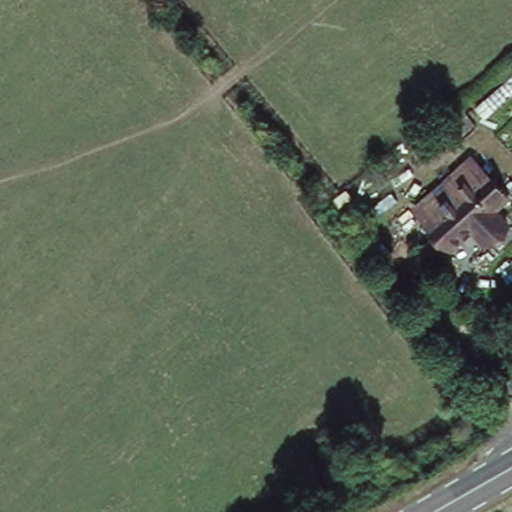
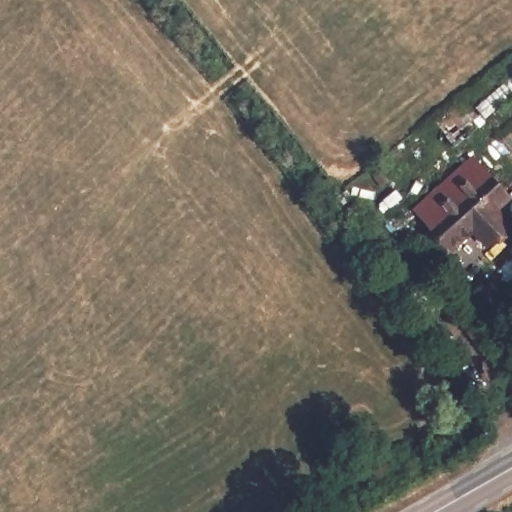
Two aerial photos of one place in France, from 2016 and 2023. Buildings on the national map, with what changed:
unchanged [(511,198),(495,212),(510,239),(489,255),(470,235),(446,257),(401,213),(469,148),(511,198)]

